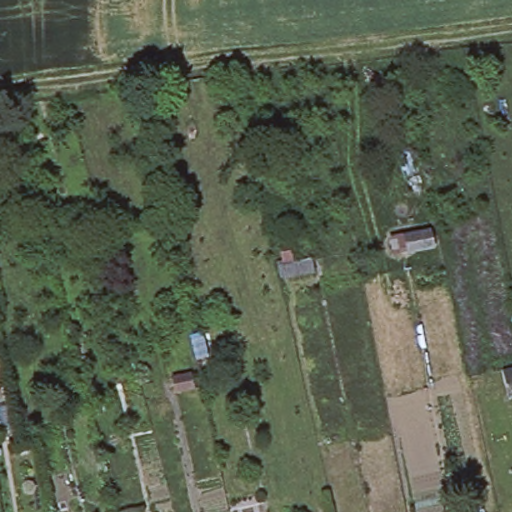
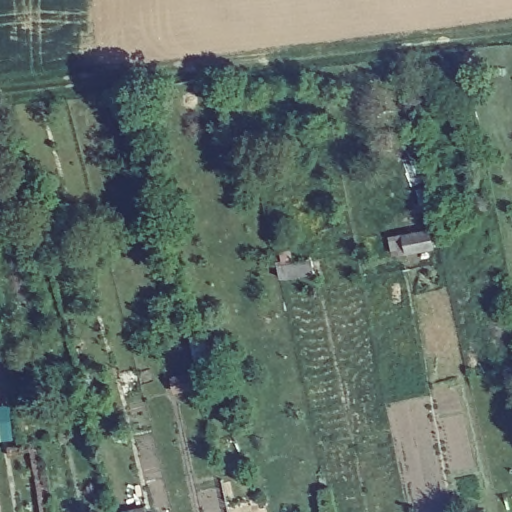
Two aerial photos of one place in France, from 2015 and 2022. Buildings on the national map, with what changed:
unchanged [(427,227),(432,245),(406,250),(402,233),(427,227)]
unchanged [(311,257),(313,270),(290,275),(287,261),(311,257)]

